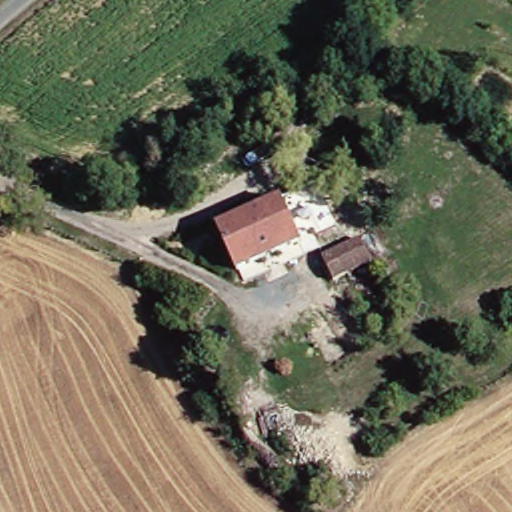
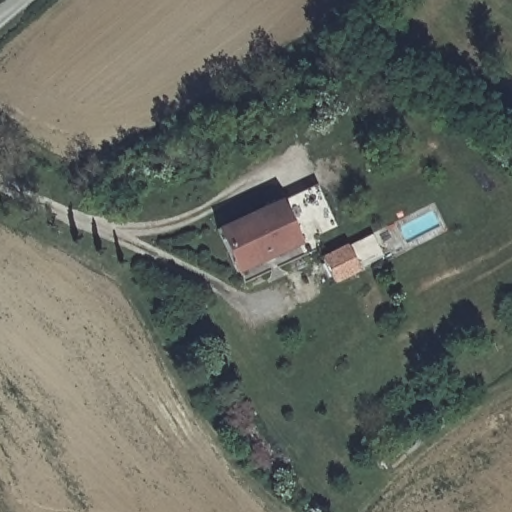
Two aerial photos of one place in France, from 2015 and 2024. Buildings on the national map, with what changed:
unchanged [(242,269),(219,211),(284,185),(289,198),(307,243),(242,269)]
unchanged [(325,185),(342,229),(307,243),(289,198),(325,185)]
unchanged [(338,259),(375,237),(389,259),(351,280),(338,259)]
unchanged [(339,360),(318,330),(303,340),(291,322),(340,290),(373,337),(339,360)]

